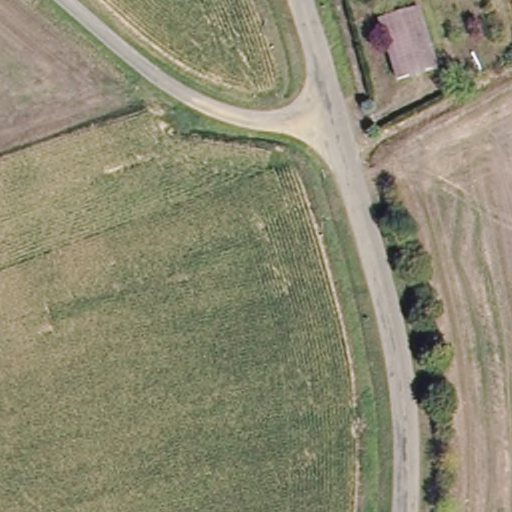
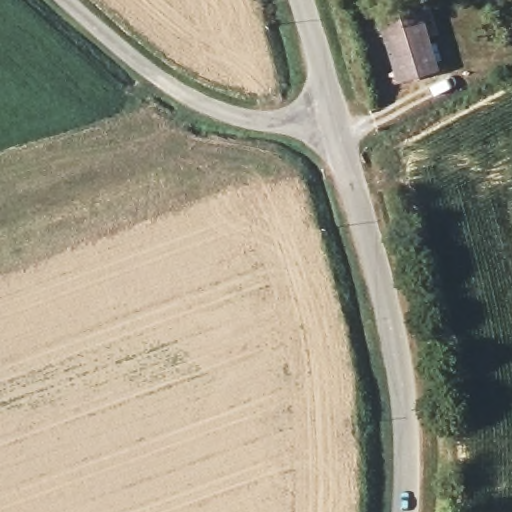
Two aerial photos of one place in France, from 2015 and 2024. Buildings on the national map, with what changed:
unchanged [(400,86),(384,28),(419,16),(435,74),(400,86)]

